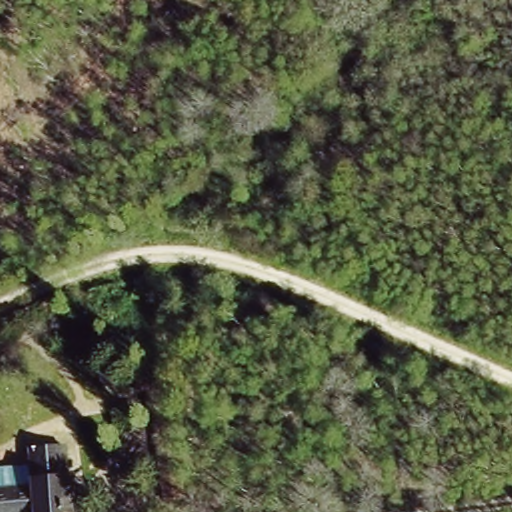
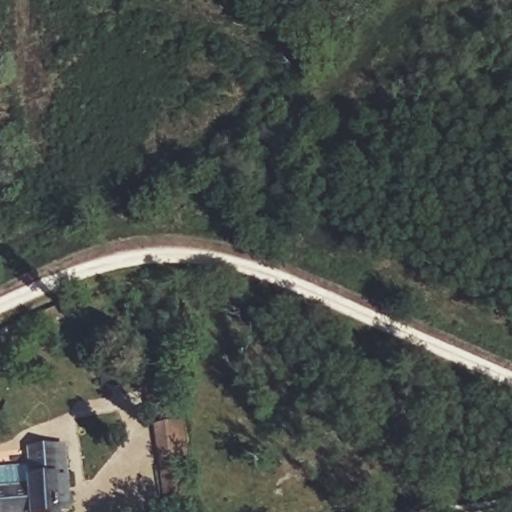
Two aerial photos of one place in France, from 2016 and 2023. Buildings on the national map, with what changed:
unchanged [(230,327),(240,356),(231,359),(247,411),(217,422),(190,341),(219,331),(230,327)]
unchanged [(27,444),(71,440),(75,512),(0,512),(0,466),(28,462),(27,444)]

